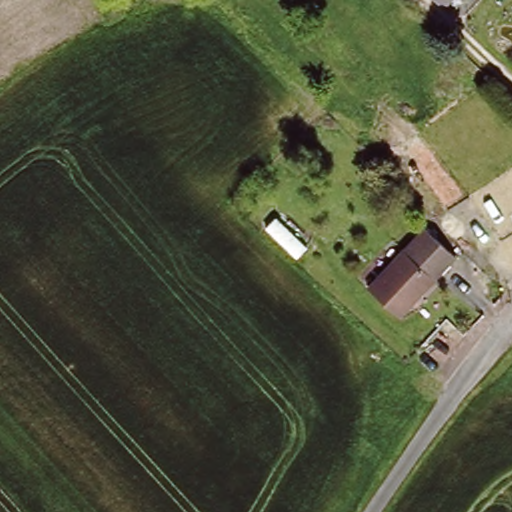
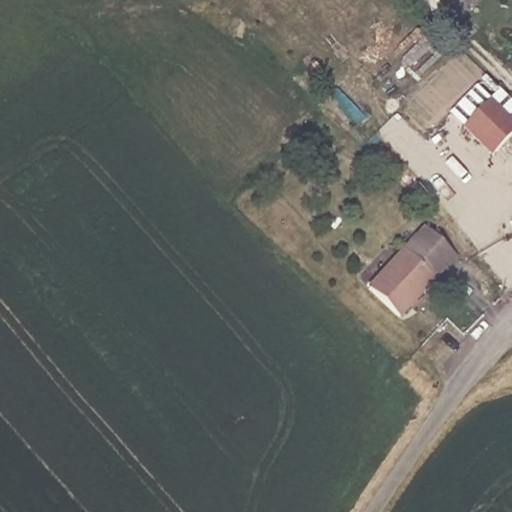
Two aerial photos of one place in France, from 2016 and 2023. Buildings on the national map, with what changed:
new [(512,121),(512,137),(493,156),(465,127),(492,101),(512,121)]
unchanged [(367,284),(423,221),(457,255),(401,316),(367,284)]

